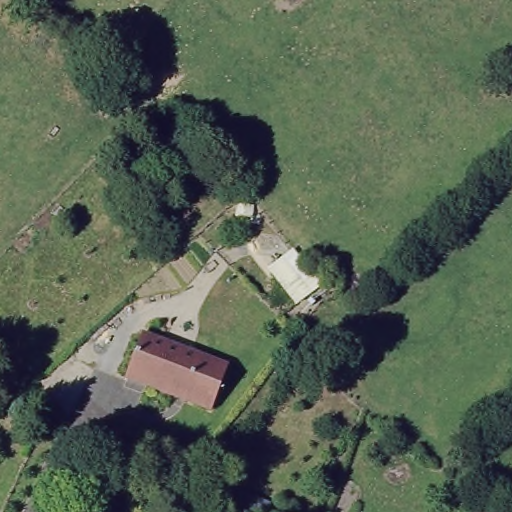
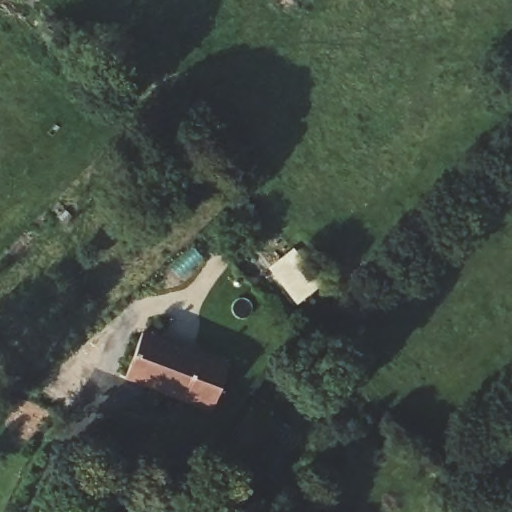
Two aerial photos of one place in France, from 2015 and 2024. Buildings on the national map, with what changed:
unchanged [(287,270),(319,300),(311,309),(279,279),(287,270)]
unchanged [(227,365),(213,409),(126,380),(139,337),(227,365)]

